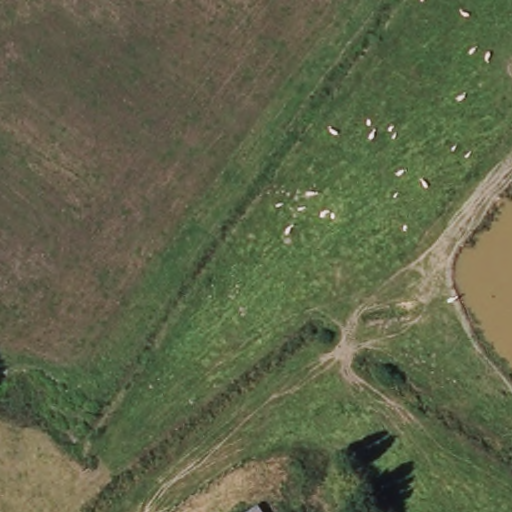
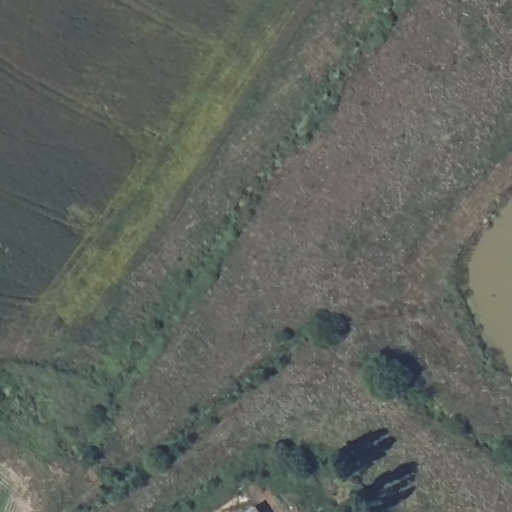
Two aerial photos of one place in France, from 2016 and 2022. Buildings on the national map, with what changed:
unchanged [(255,507),(258,512),(247,512),(255,507)]

